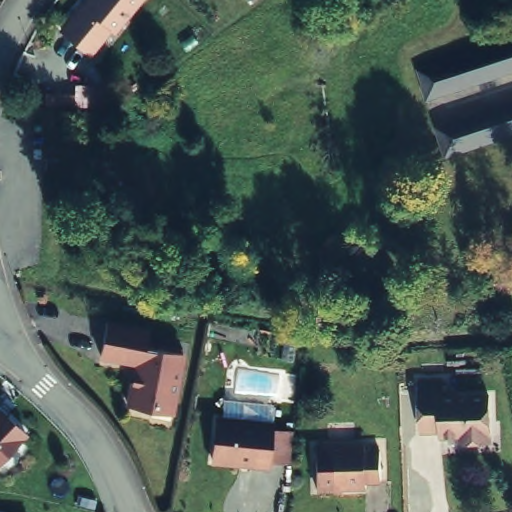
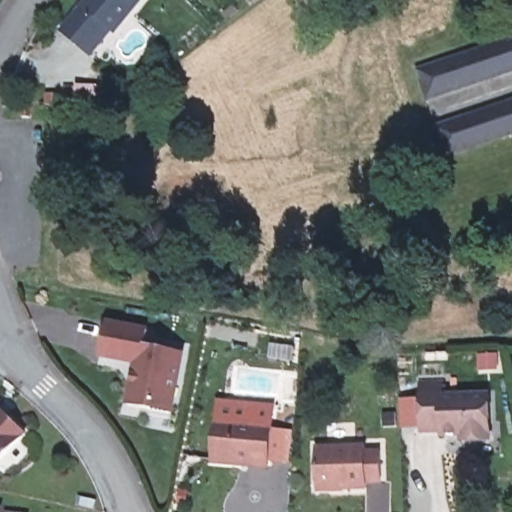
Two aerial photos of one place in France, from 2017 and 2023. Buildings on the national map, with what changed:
unchanged [(86,54),(73,42),(57,30),(79,4),(80,5),(84,0),(135,0),(108,31),(108,30),(97,42),(96,41),(86,54)]
unchanged [(512,60),(424,90),(414,62),(512,28),(512,60)]
unchanged [(512,127),(454,147),(443,119),(512,95),(512,127)]
unchanged [(48,118),(23,117),(23,100),(49,101),(48,118)]
unchanged [(148,402),(126,398),(133,362),(138,363),(139,356),(98,348),(104,317),(146,325),(144,340),(181,346),(171,398),(170,406),(148,402)]
unchanged [(473,435),(452,435),(453,430),(434,430),(433,383),(454,383),(454,395),(499,395),(501,438),(479,439),(473,439),(473,435)]
unchanged [(0,463),(0,408),(1,408),(3,410),(6,407),(15,415),(33,430),(0,463)]
unchanged [(274,420),(269,463),(216,457),(220,414),(274,420)]
unchanged [(367,445),(367,450),(382,450),(382,480),(367,481),(368,487),(319,488),(318,446),(367,445)]
unchanged [(8,510),(8,512),(0,512),(0,509),(8,510)]

